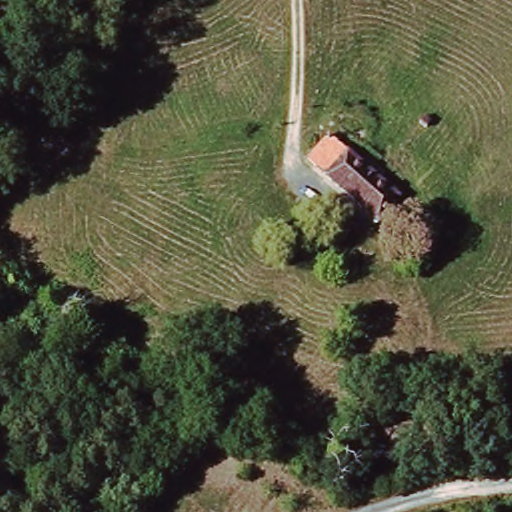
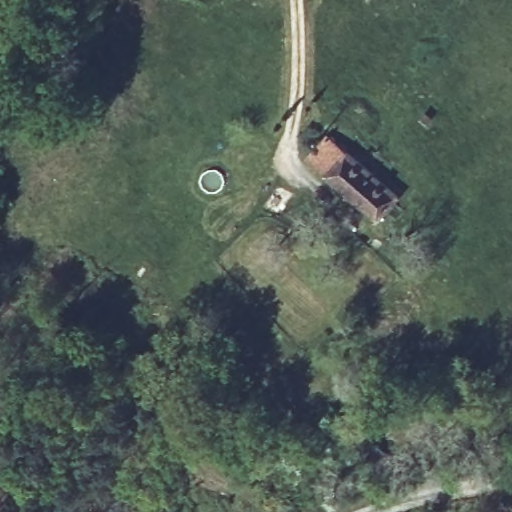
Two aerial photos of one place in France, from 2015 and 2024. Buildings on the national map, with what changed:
unchanged [(302,160),(326,130),(350,150),(325,177),(302,160)]
unchanged [(374,220),(325,177),(350,150),(398,191),(374,220)]

